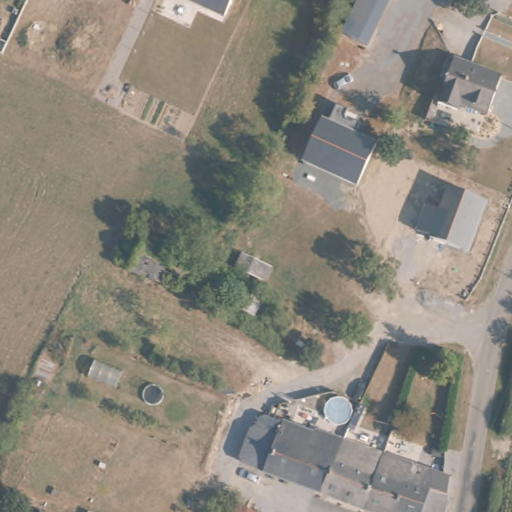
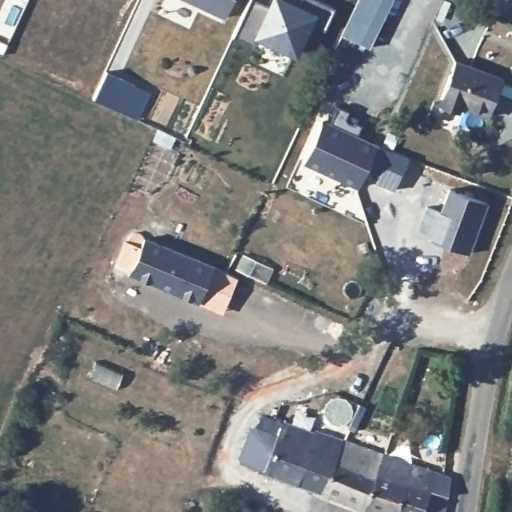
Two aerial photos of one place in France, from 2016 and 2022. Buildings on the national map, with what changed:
unchanged [(188,0),(231,0),(223,17),(188,0)]
new [(257,0),(265,4),(267,0),(293,0),(297,2),(298,0),(318,0),(332,6),(321,29),(308,25),(293,56),(253,38),(252,44),(230,36),(248,0),(257,0)]
unchanged [(342,34),(360,0),(393,0),(368,47),(342,34)]
unchanged [(501,82),(487,114),(464,104),(460,114),(437,104),(454,63),(501,82)]
new [(105,70),(147,91),(134,118),(92,98),(105,70)]
unchanged [(355,187),(300,161),(322,121),(331,123),(337,109),(359,121),(353,136),(374,144),(355,187)]
unchanged [(469,252),(428,236),(446,190),(485,204),(469,252)]
demolished [(217,270),(235,278),(228,293),(207,284),(199,303),(109,263),(120,238),(131,242),(135,234),(217,270)]
new [(143,236),(234,275),(219,313),(127,274),(143,236)]
unchanged [(273,262),(265,283),(234,272),(242,249),(273,262)]
unchanged [(168,354),(163,364),(150,358),(154,348),(168,354)]
unchanged [(326,442),(322,451),(335,457),(321,499),(247,471),(267,419),(285,425),(326,442)]
unchanged [(383,454),(364,506),(362,512),(356,512),(321,499),(335,457),(341,439),(383,454)]
unchanged [(449,480),(447,512),(381,512),(364,506),(383,454),(449,480)]
unchanged [(248,512),(233,512),(235,507),(248,512)]

